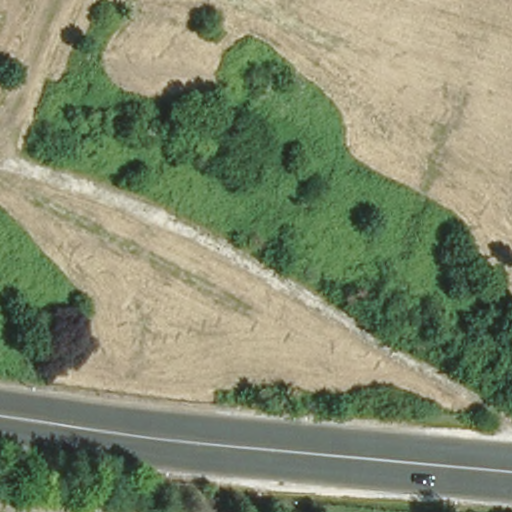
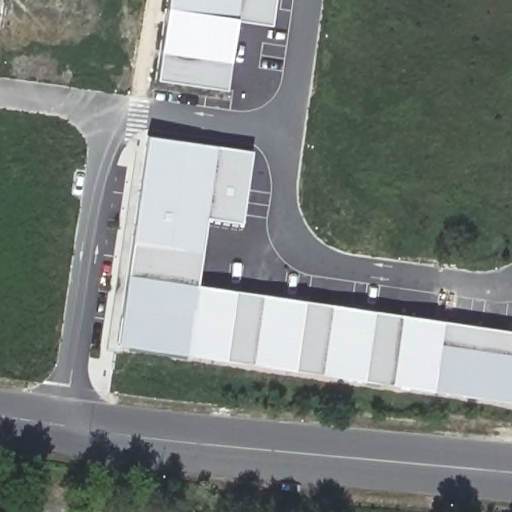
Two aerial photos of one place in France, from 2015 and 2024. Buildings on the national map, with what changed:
new [(268,23),(234,18),(224,89),(156,79),(168,0),(271,0),(268,23)]
new [(117,344),(148,136),(249,153),(239,221),(206,217),(196,285),(512,332),(512,402),(117,344)]

